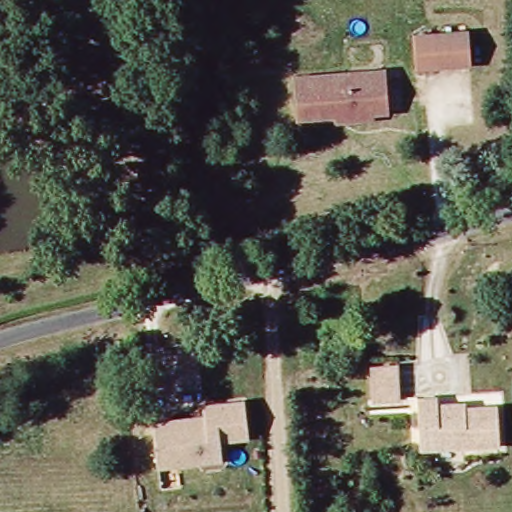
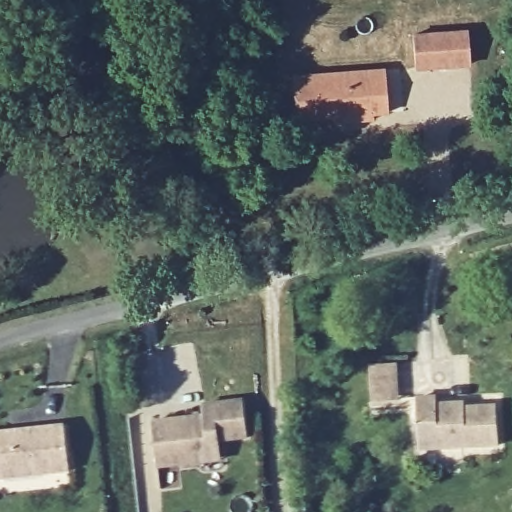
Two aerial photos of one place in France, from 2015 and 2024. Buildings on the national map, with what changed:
unchanged [(416,36),(471,32),(473,65),(418,69),(416,36)]
unchanged [(336,117),(297,119),(294,77),(388,71),(390,114),(375,115),(376,120),(351,122),(336,122),(336,117)]
unchanged [(402,362),(403,400),(372,400),(371,363),(402,362)]
unchanged [(244,397),(250,439),(221,442),(223,460),(159,467),(154,420),(205,413),(203,402),(244,397)]
unchanged [(501,450),(487,450),(422,452),(420,402),(439,401),(439,407),(456,407),(467,407),(467,411),(486,411),(500,410),(501,450)]
new [(63,426),(68,471),(0,478),(0,432),(63,426)]

